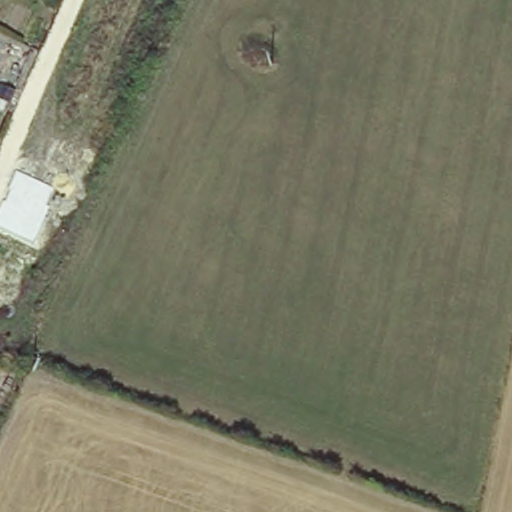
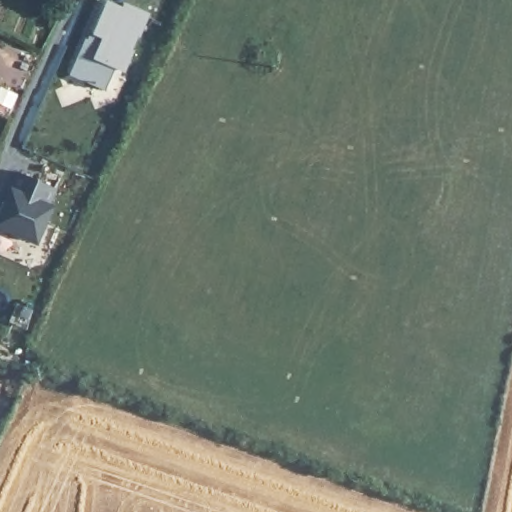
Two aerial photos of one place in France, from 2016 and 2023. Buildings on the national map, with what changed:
new [(69,74),(83,40),(93,33),(105,0),(106,0),(122,6),(125,0),(154,13),(143,39),(138,36),(125,70),(115,67),(104,90),(69,74)]
demolished [(69,121),(105,134),(82,194),(44,185),(69,121)]
new [(44,205),(49,208),(34,242),(0,229),(0,206),(3,200),(6,201),(11,190),(8,188),(16,171),(54,188),(44,205)]

